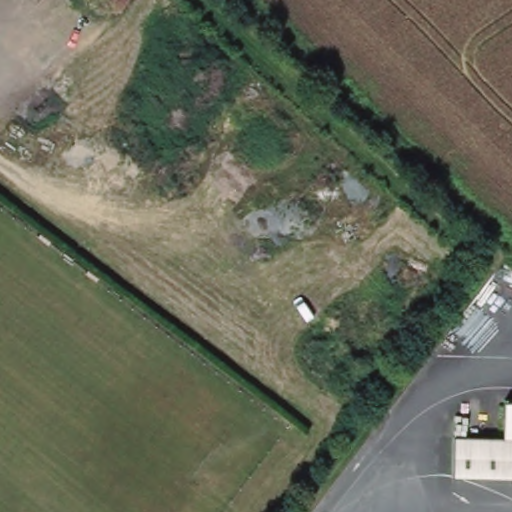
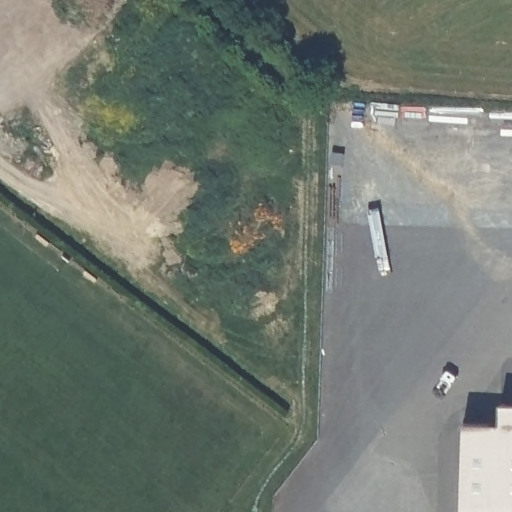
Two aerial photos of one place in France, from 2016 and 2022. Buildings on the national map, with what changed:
unchanged [(455,435),(505,435),(505,400),(512,401),(512,474),(454,473),(455,435)]

